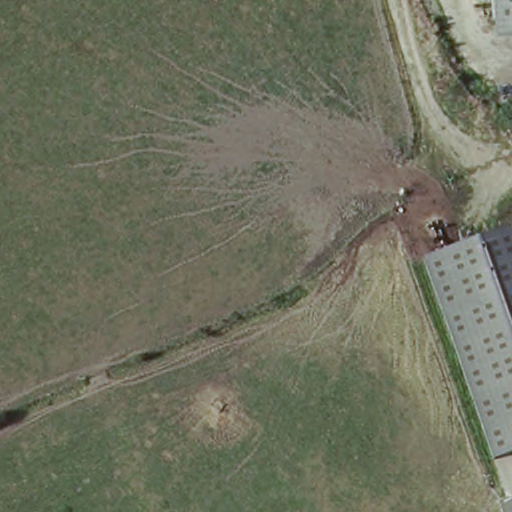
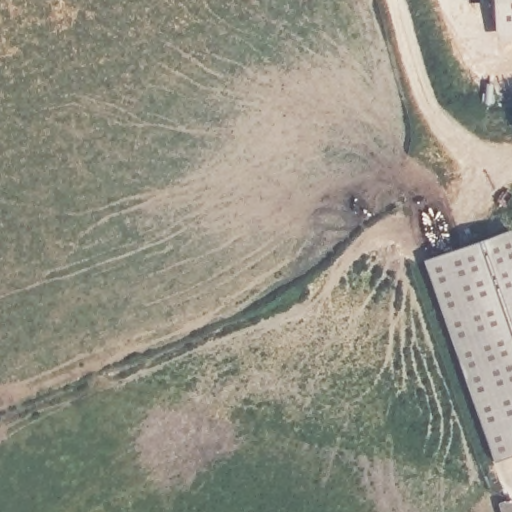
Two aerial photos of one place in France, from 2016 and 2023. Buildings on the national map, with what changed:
unchanged [(512,47),(493,48),(488,0),(512,0),(512,47)]
unchanged [(511,239),(512,243),(512,458),(495,464),(425,270),(511,239)]
unchanged [(512,500),(512,512),(497,512),(495,503),(512,500)]

